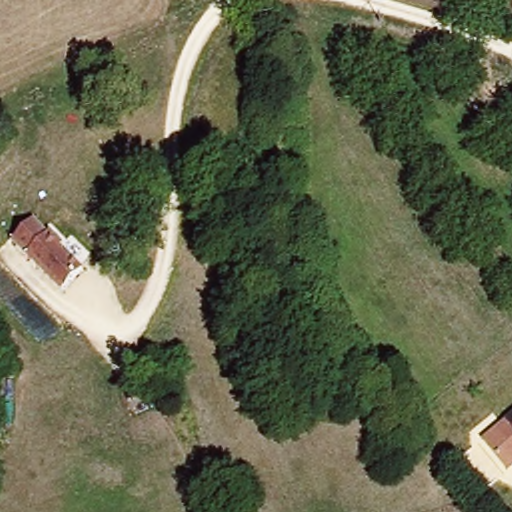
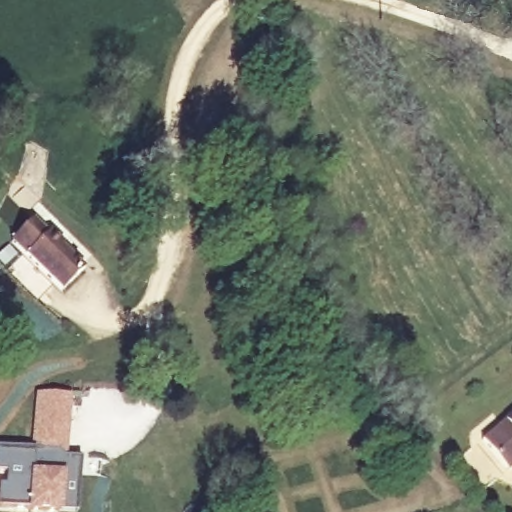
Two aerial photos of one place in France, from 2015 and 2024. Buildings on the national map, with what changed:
unchanged [(7,239),(31,211),(86,265),(62,292),(7,239)]
new [(36,393),(69,396),(67,419),(63,460),(56,455),(30,452),(33,417),(36,393)]
unchanged [(509,473),(483,443),(512,420),(512,471),(509,473)]
new [(2,475),(0,475),(0,449),(56,455),(63,460),(81,463),(79,484),(76,512),(0,512),(0,490),(1,490),(2,475)]

